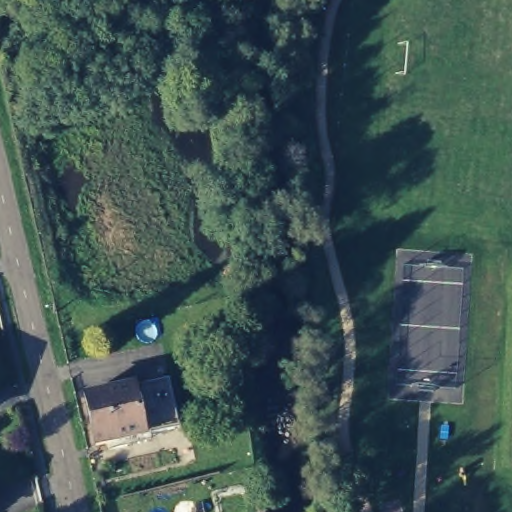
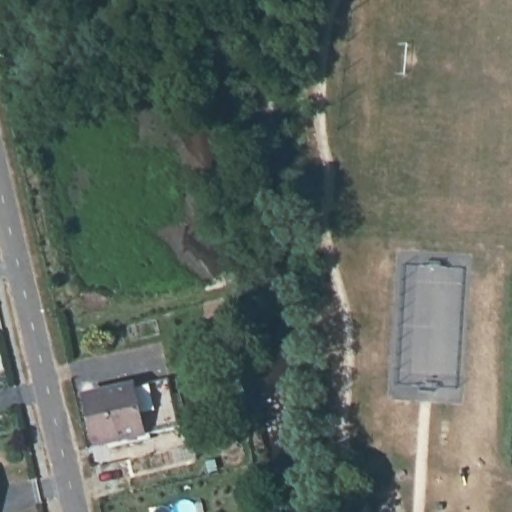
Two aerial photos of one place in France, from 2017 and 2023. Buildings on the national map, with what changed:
unchanged [(233,353),(236,369),(208,374),(205,358),(233,353)]
unchanged [(93,443),(85,395),(132,386),(170,379),(178,426),(161,430),(93,443)]

